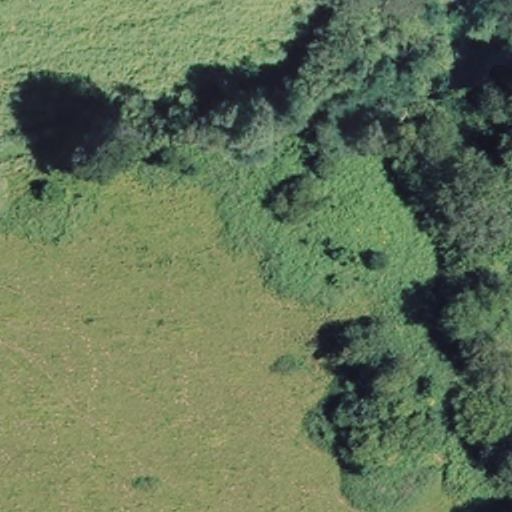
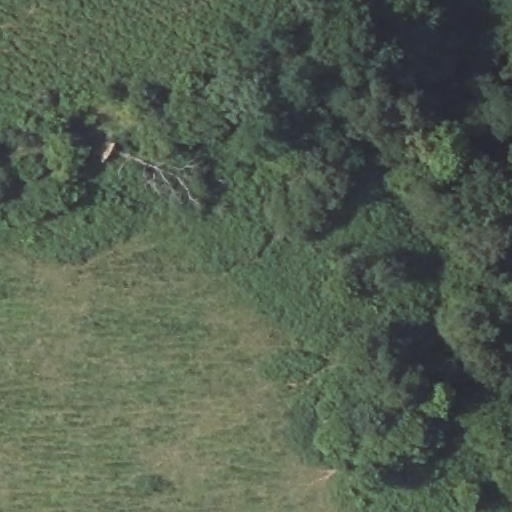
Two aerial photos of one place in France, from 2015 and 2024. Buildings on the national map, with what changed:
unchanged [(407,444),(372,443),(373,406),(407,405),(407,444)]

